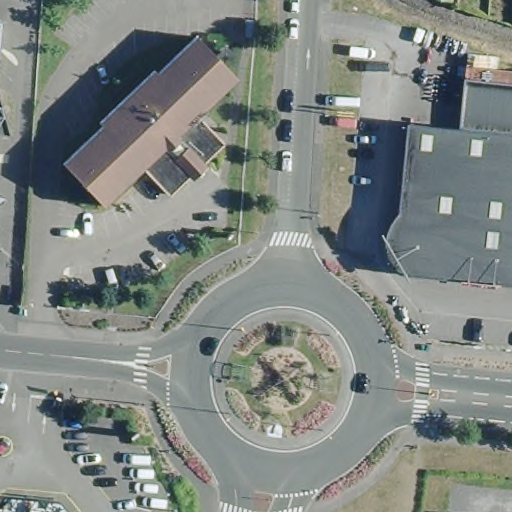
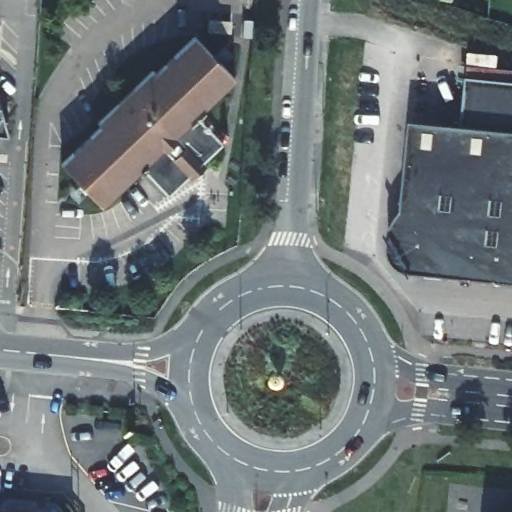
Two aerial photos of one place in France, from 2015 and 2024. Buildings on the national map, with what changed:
unchanged [(99,121),(96,119),(150,66),(154,69),(193,31),(232,73),(194,111),(222,139),(201,159),(198,156),(183,170),(186,174),(165,192),(139,163),(100,201),(58,159),(99,121)]
unchanged [(456,134),(461,84),(512,89),(512,292),(413,282),(390,254),(403,129),(456,134)]
unchanged [(0,137),(0,122),(2,137),(0,137)]
unchanged [(55,498),(67,512),(0,512),(0,498),(7,493),(55,498)]

